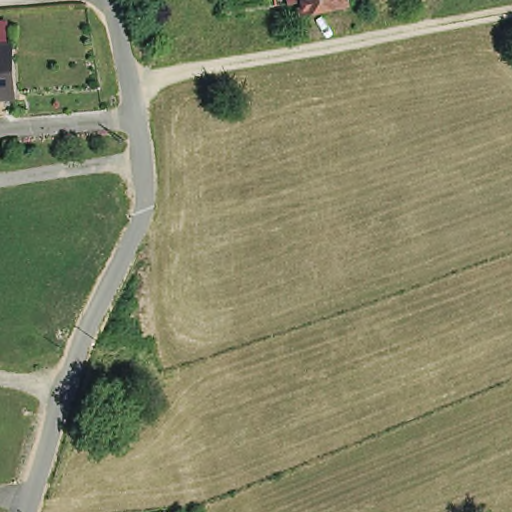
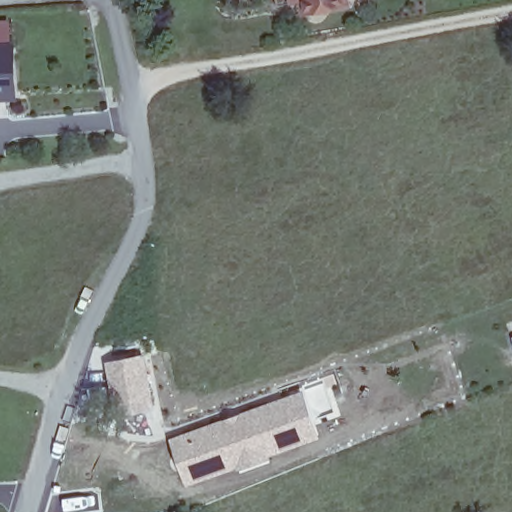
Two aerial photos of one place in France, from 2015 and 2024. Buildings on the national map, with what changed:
unchanged [(282,4),(281,0),(304,0),(282,4)]
unchanged [(353,5),(309,13),(307,0),(352,0),(353,5)]
unchanged [(15,42),(18,90),(0,91),(0,43),(15,42)]
new [(118,418),(105,361),(144,353),(156,409),(118,418)]
new [(322,380),(333,412),(313,419),(319,437),(301,443),(296,428),(277,435),(283,450),(227,471),(226,468),(185,484),(168,437),(301,388),(322,380)]

